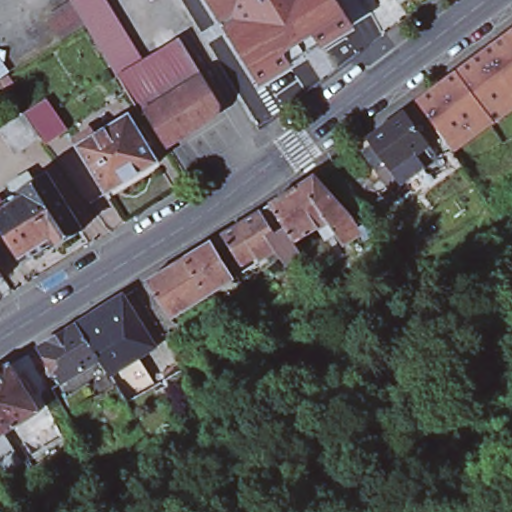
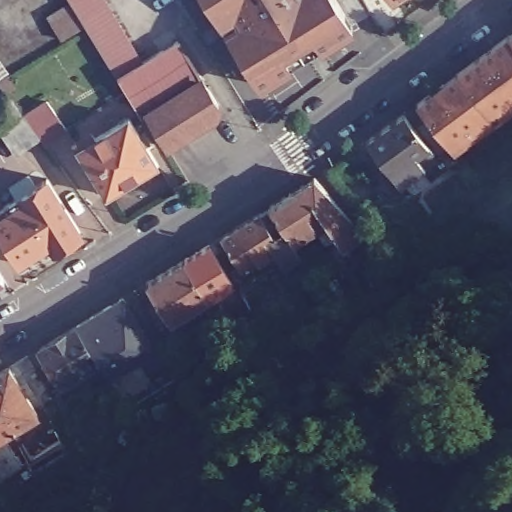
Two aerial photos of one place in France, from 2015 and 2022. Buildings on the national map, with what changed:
unchanged [(106,0),(118,18),(94,33),(93,34),(87,25),(61,43),(45,19),(72,0),(106,0)]
unchanged [(259,84),(208,0),(334,0),(352,29),(259,84)]
unchanged [(93,34),(118,18),(146,65),(121,80),(93,34)]
unchanged [(481,53),(512,30),(512,98),(481,53)]
unchanged [(151,118),(150,116),(171,104),(146,65),(182,44),(206,83),(222,109),(222,110),(221,115),(220,119),(217,123),(208,128),(171,150),(151,118)]
unchanged [(395,179),(390,171),(372,146),(365,138),(403,110),(412,104),(416,101),(481,53),(512,98),(512,107),(489,124),(489,123),(451,150),(449,148),(437,156),(398,184),(395,179)]
unchanged [(146,65),(171,104),(150,116),(151,118),(146,120),(121,80),(146,65)]
unchanged [(21,115),(23,114),(45,100),(65,129),(43,143),(39,136),(37,138),(16,150),(3,129),(22,116),(21,115)]
unchanged [(128,115),(156,162),(104,194),(76,146),(128,115)]
unchanged [(338,223),(332,215),(299,236),(274,199),(308,178),(318,171),(343,199),(353,212),(338,223)]
unchanged [(78,230),(53,246),(51,244),(20,263),(0,230),(0,205),(44,177),(78,230)]
unchanged [(288,260),(275,241),(244,260),(224,229),(263,205),(271,199),(288,223),(304,248),(288,260)]
unchanged [(202,242),(224,279),(201,295),(176,258),(202,242)]
unchanged [(163,319),(139,280),(176,258),(201,295),(184,306),(188,310),(183,313),(179,309),(163,319)]
unchanged [(0,278),(0,272),(3,277),(0,278)]
unchanged [(75,323),(120,295),(152,348),(106,375),(96,359),(75,325),(75,323)]
unchanged [(197,309),(196,307),(204,301),(209,309),(196,317),(193,313),(197,309)]
unchanged [(75,323),(75,325),(96,359),(59,382),(37,347),(75,323)]
unchanged [(31,412),(0,431),(0,366),(3,364),(31,412)]
unchanged [(0,441),(11,462),(0,469),(0,441)]

